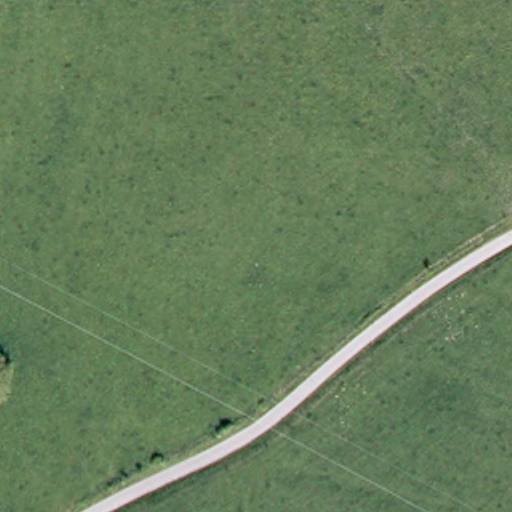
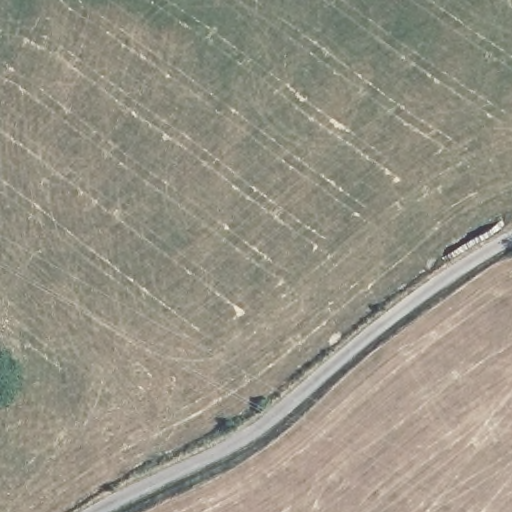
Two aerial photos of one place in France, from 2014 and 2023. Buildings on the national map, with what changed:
[]

